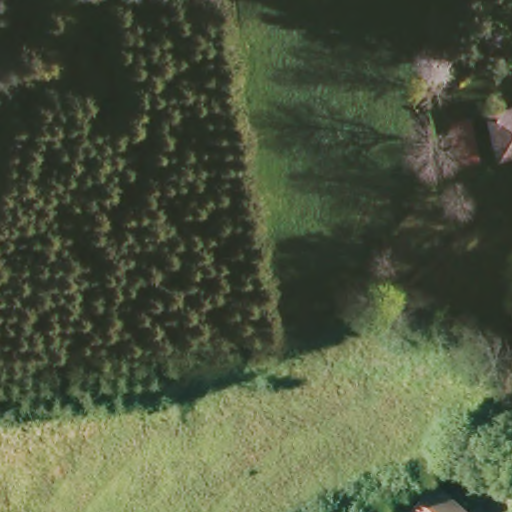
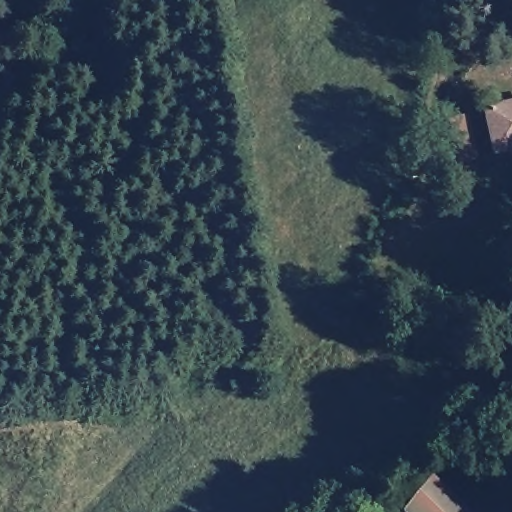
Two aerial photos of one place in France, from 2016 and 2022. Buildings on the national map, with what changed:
unchanged [(496,155),(485,112),(512,104),(512,151),(496,155)]
unchanged [(451,164),(447,119),(463,115),(473,157),(451,164)]
unchanged [(415,334),(427,310),(458,326),(448,349),(415,334)]
unchanged [(450,512),(407,512),(425,490),(450,512)]
unchanged [(474,512),(451,512),(462,500),(474,512)]

